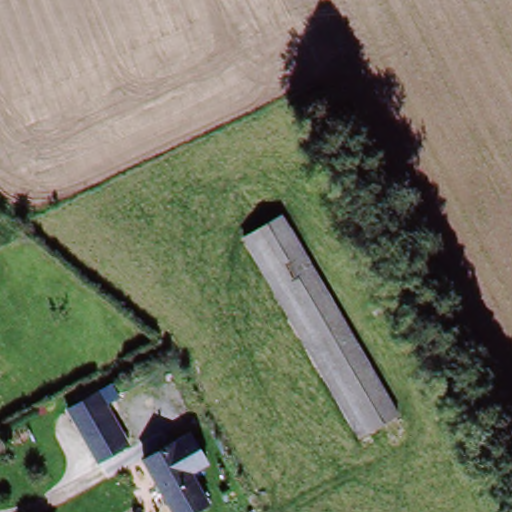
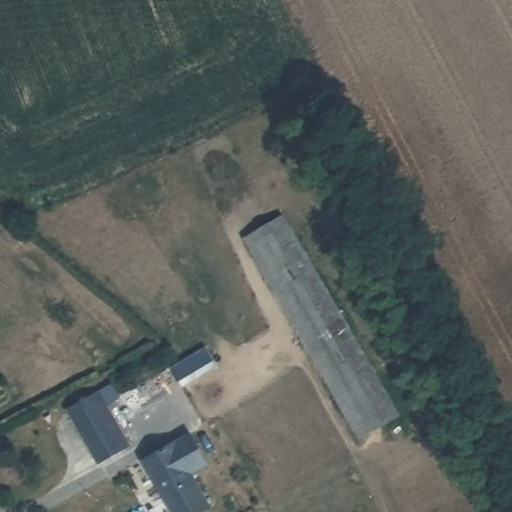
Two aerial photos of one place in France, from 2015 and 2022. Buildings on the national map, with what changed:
unchanged [(357,442),(248,237),(288,217),(397,420),(357,442)]
unchanged [(131,443),(103,458),(75,405),(104,390),(131,443)]
unchanged [(192,430),(213,461),(183,481),(162,450),(192,430)]
unchanged [(175,512),(142,463),(162,450),(183,481),(199,506),(190,512),(175,512)]

